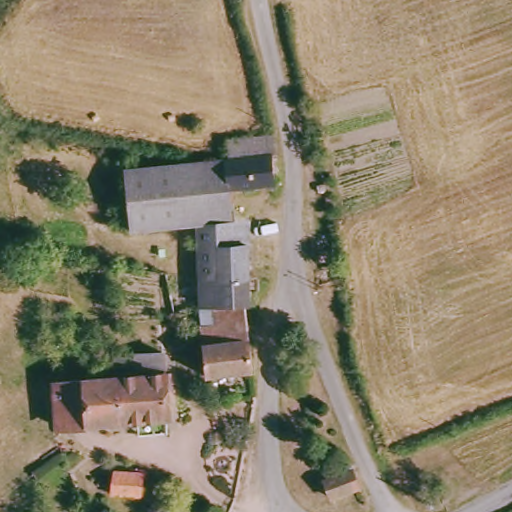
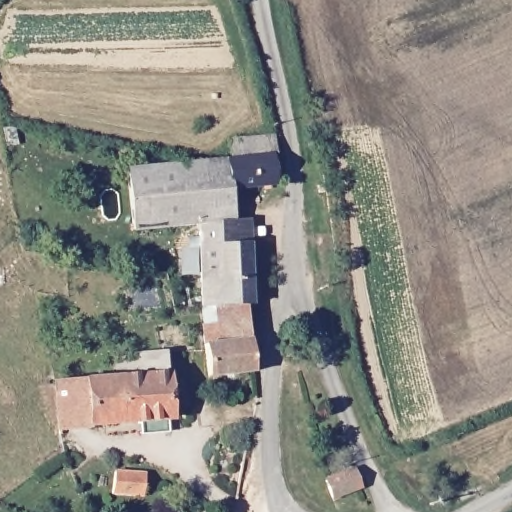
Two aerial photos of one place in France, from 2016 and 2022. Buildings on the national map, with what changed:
unchanged [(254,188),(240,188),(242,215),(255,214),(257,245),(260,303),(255,303),(207,306),(205,221),(148,226),(142,169),(197,164),(243,160),(243,140),(274,136),(288,136),(290,156),(283,156),(286,186),(254,188)]
unchanged [(255,303),(258,373),(208,377),(208,352),(207,306),(255,303)]
unchanged [(118,378),(118,355),(166,354),(168,373),(178,372),(180,407),(171,408),(170,420),(61,425),(60,380),(118,378)]
unchanged [(136,481),(129,501),(100,492),(107,474),(136,481)]
unchanged [(363,477),(368,494),(343,500),(338,482),(363,477)]

